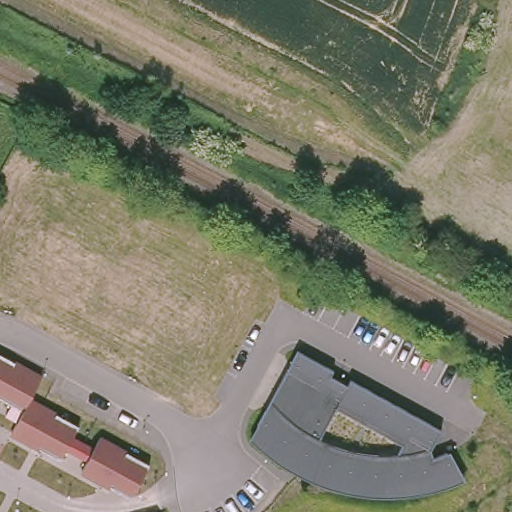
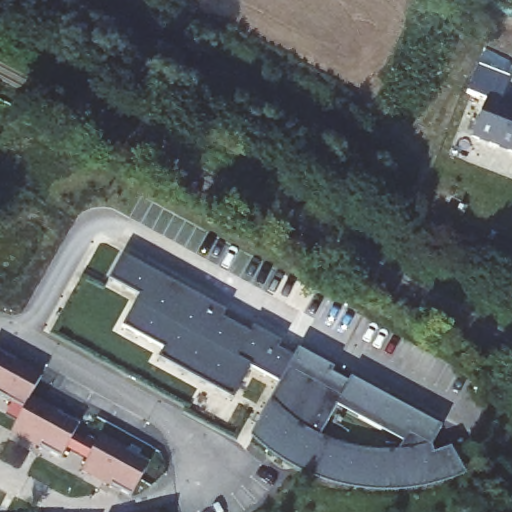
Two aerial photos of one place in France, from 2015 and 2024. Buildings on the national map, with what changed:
new [(512,108),(512,151),(469,135),(484,97),(512,108)]
new [(225,313),(223,318),(249,332),(252,327),(281,344),(278,350),(293,359),(279,383),(249,367),(232,399),(159,359),(164,349),(122,327),(139,296),(110,281),(123,257),(225,313)]
unchanged [(420,491),(400,494),(384,495),(367,494),(344,491),(327,487),(310,480),(283,465),(263,450),(248,437),(251,433),(274,390),(297,351),(331,371),(328,376),(344,386),(348,381),(435,430),(427,445),(429,454),(451,446),(466,475),(437,488),(420,491)]
unchanged [(43,373),(32,399),(56,410),(55,413),(80,425),(73,435),(95,446),(100,435),(151,461),(131,496),(110,485),(107,489),(81,472),(87,460),(66,450),(60,460),(11,434),(18,421),(4,414),(11,403),(0,398),(0,352),(43,373)]
unchanged [(144,512),(155,509),(155,512),(144,512)]

